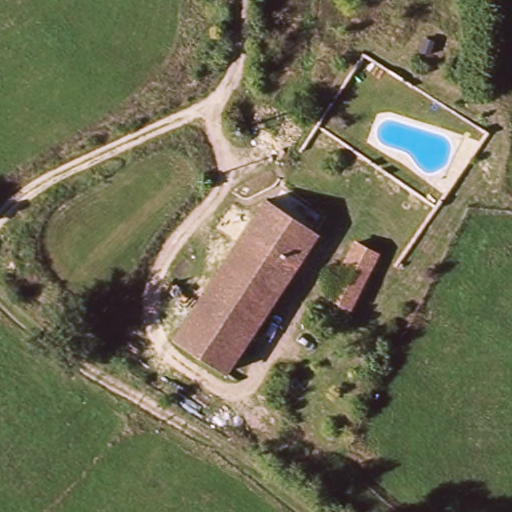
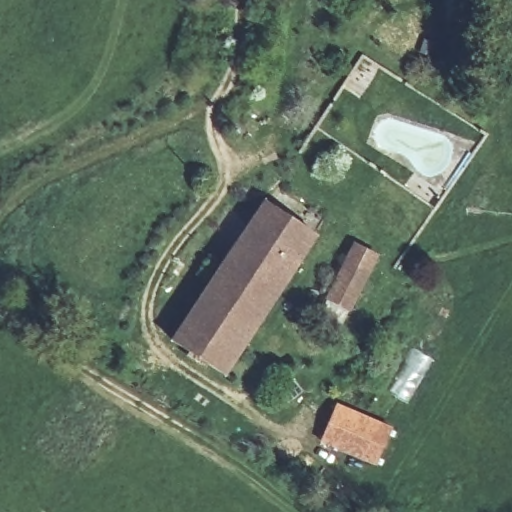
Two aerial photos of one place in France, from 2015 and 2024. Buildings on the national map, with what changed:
unchanged [(229,375),(175,339),(274,183),(329,220),(229,375)]
unchanged [(347,248),(373,261),(363,281),(369,286),(371,293),(368,297),(362,299),(355,300),(328,285),(347,248)]
unchanged [(217,394),(164,358),(175,339),(229,375),(217,394)]
new [(393,427),(375,465),(320,442),(337,403),(393,427)]

